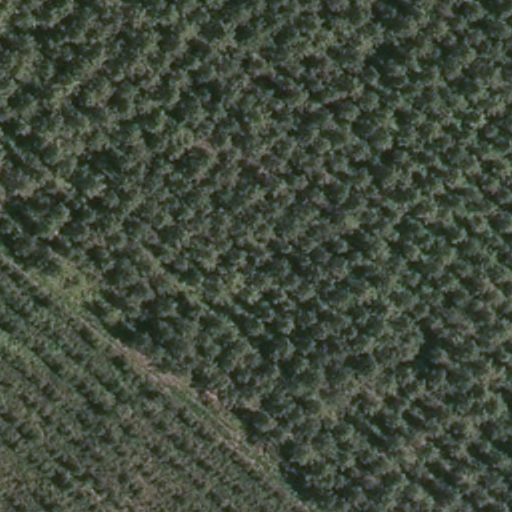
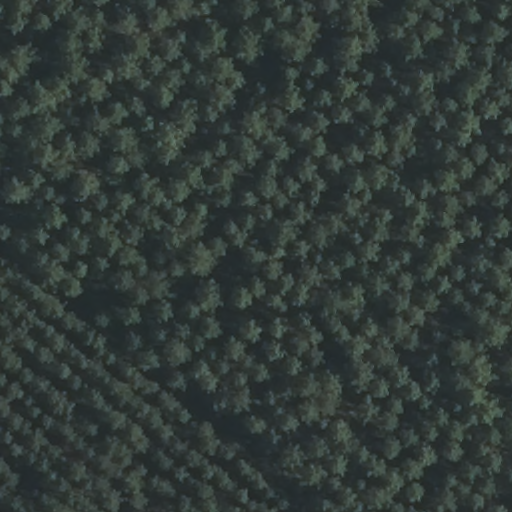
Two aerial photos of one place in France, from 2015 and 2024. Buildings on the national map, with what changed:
[]

